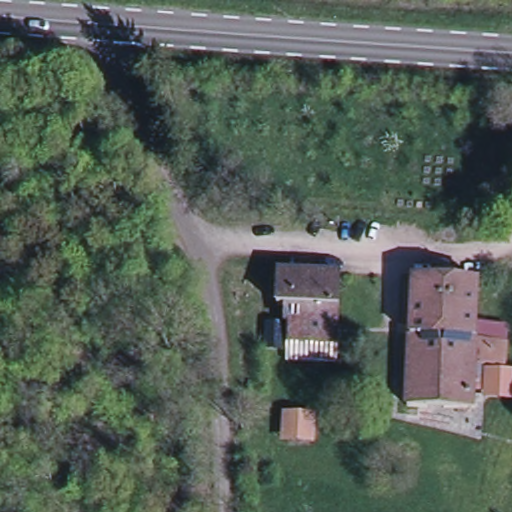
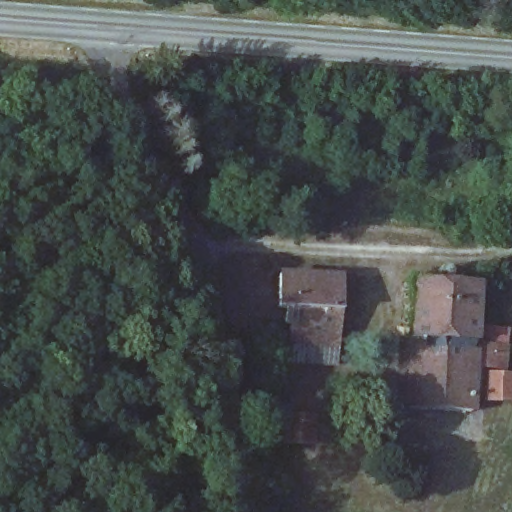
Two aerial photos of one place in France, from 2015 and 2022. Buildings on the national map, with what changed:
unchanged [(274,267),(345,269),(344,341),(286,341),(287,319),(281,319),(283,298),(273,297),(274,267)]
unchanged [(415,276),(474,282),(469,412),(408,410),(415,276)]

